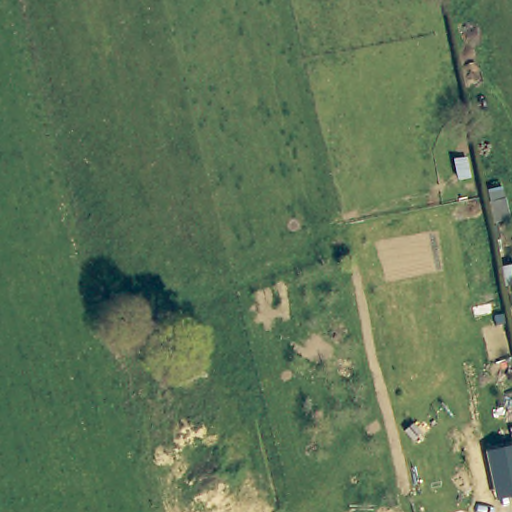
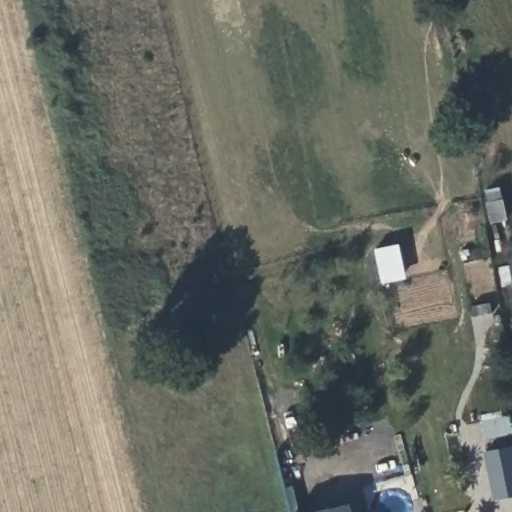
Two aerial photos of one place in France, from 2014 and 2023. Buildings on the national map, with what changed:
unchanged [(485,453),(512,447),(512,497),(494,501),(485,453)]
new [(351,500),(350,501),(353,512),(303,512),(351,500)]

